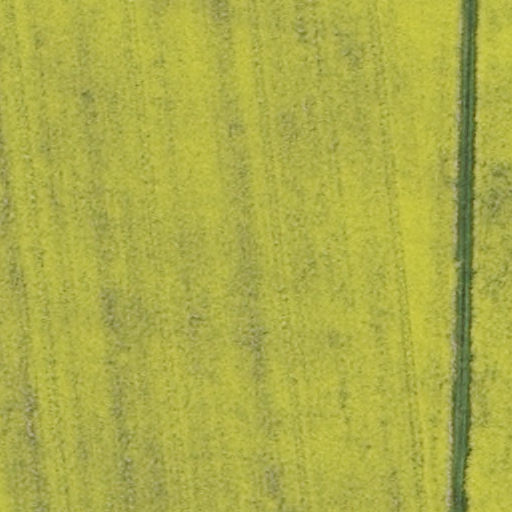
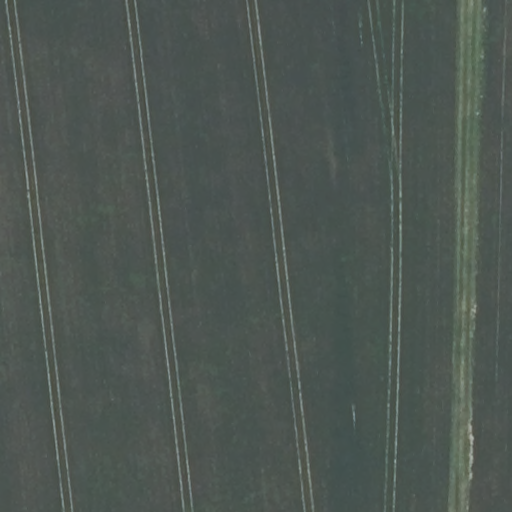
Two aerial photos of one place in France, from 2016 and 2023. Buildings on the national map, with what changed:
[]

